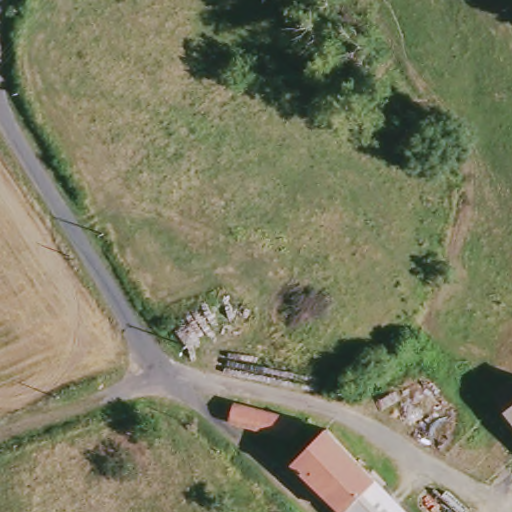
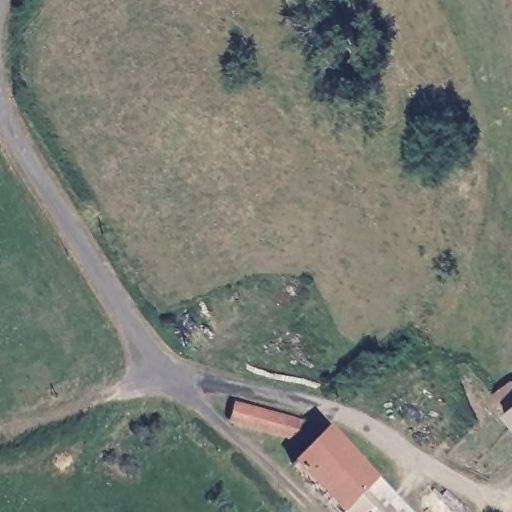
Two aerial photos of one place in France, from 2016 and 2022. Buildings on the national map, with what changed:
unchanged [(494,396),(512,381),(512,424),(494,396)]
unchanged [(299,419),(290,433),(226,416),(230,402),(299,419)]
unchanged [(401,512),(334,512),(287,463),(322,427),(401,512)]

